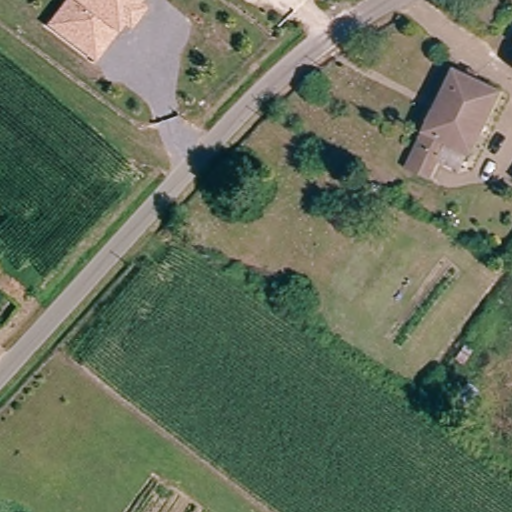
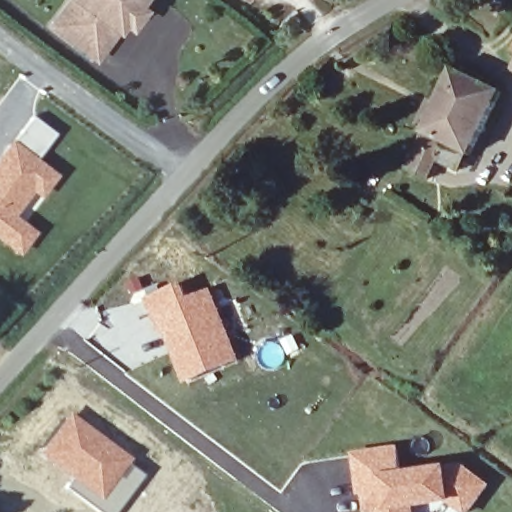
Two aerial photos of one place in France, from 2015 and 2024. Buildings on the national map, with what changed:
unchanged [(50,25),(68,0),(145,0),(99,62),(50,25)]
unchanged [(495,91),(458,168),(435,157),(425,177),(406,168),(453,72),(495,91)]
new [(31,114),(55,134),(37,159),(57,175),(37,199),(32,196),(15,216),(35,233),(15,255),(0,244),(0,153),(11,139),(31,114)]
new [(184,282),(190,296),(211,287),(241,360),(185,384),(145,298),(184,282)]
new [(71,413),(131,459),(128,463),(100,501),(69,479),(38,454),(71,413)]
new [(400,444),(403,469),(457,461),(491,484),(469,512),(460,512),(448,504),(415,509),(415,512),(366,512),(361,495),(356,496),(350,451),(400,444)]
new [(69,479),(100,501),(128,463),(144,475),(115,512),(96,512),(62,489),(69,479)]

